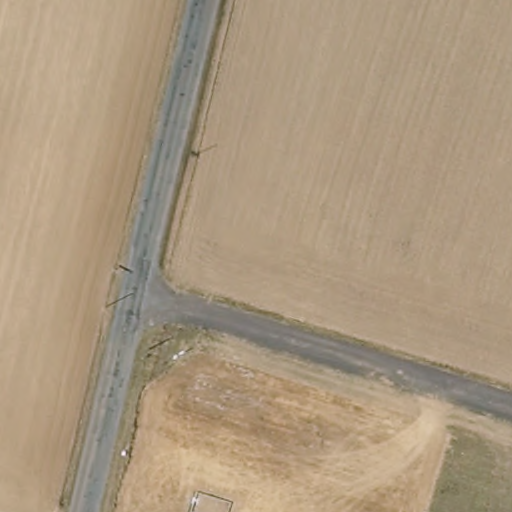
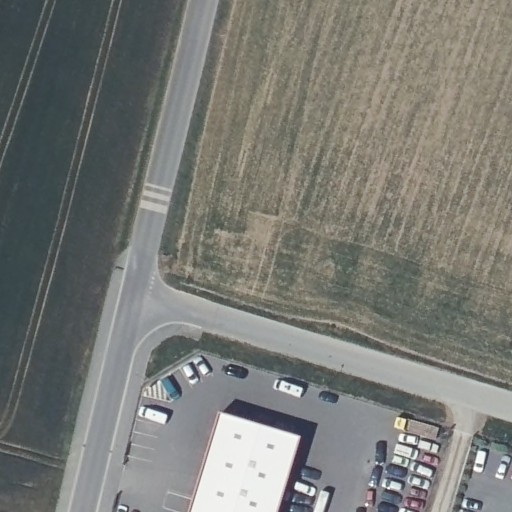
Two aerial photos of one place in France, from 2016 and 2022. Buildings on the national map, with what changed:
new [(297,441),(274,512),(186,512),(216,416),(297,441)]

